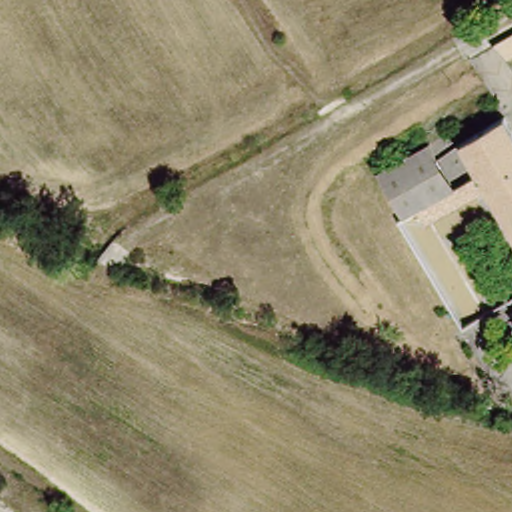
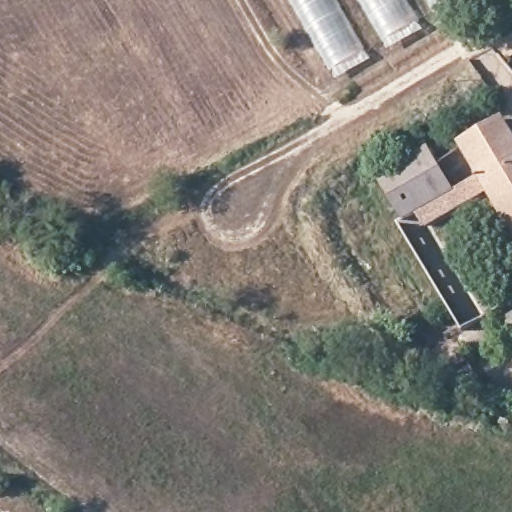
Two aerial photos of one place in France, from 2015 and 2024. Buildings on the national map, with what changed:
new [(330,72),(289,0),(460,0),(330,72)]
unchanged [(497,51),(512,43),(512,64),(509,66),(497,51)]
unchanged [(425,231),(481,325),(453,342),(445,330),(455,323),(397,227),(402,224),(454,195),(478,181),(460,150),(505,124),(512,136),(512,238),(486,195),(425,231)]
unchanged [(377,181),(428,152),(454,195),(402,224),(377,181)]

